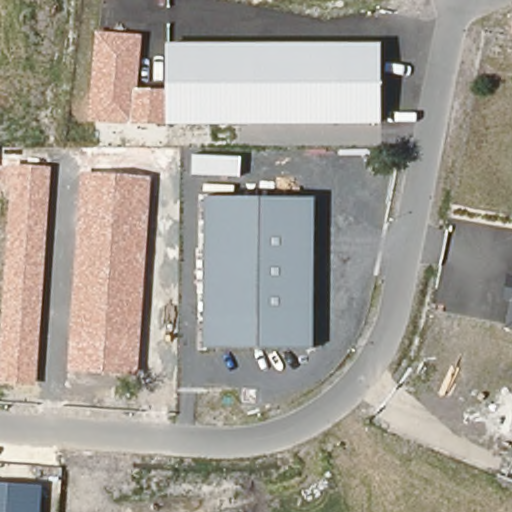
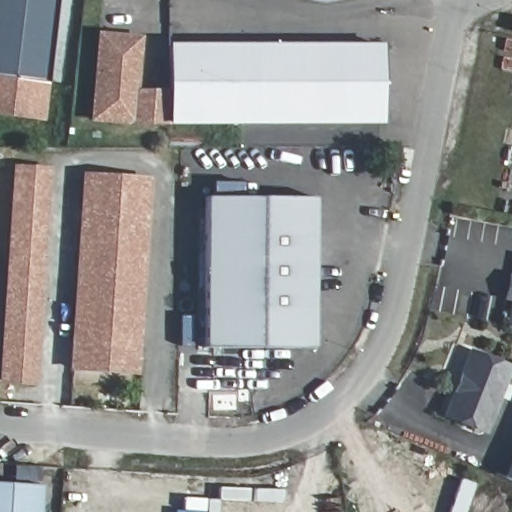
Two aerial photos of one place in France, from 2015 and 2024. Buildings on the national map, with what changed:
new [(43,81),(0,76),(0,0),(53,0),(43,81)]
unchanged [(512,24),(512,30),(511,30),(512,24)]
unchanged [(380,123),(167,124),(129,124),(88,121),(94,30),(140,34),(136,89),(167,90),(166,44),(380,43),(380,123)]
new [(43,81),(39,116),(0,112),(0,76),(43,81)]
unchanged [(36,386),(0,384),(0,331),(11,164),(50,166),(36,386)]
unchanged [(136,375),(67,372),(79,172),(151,176),(136,375)]
unchanged [(204,348),(205,196),(313,197),(313,348),(204,348)]
unchanged [(510,301),(503,300),(508,276),(512,277),(512,329),(505,328),(510,301)]
new [(484,436),(440,419),(468,349),(512,367),(484,436)]
unchanged [(512,464),(512,481),(506,479),(512,464)]
unchanged [(0,512),(0,483),(41,485),(40,512),(0,512)]
new [(220,500),(219,512),(181,512),(182,498),(220,500)]
new [(181,512),(173,512),(173,511),(181,512)]

